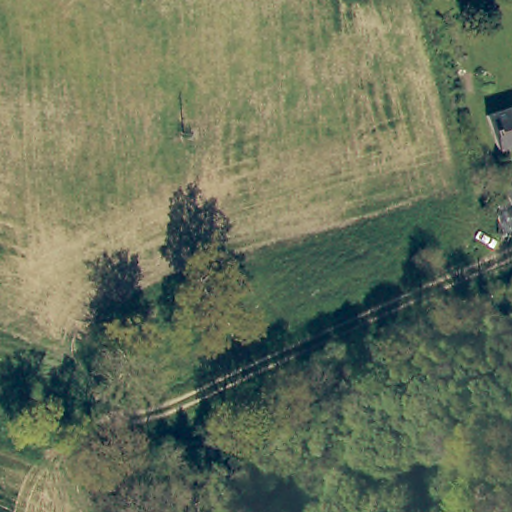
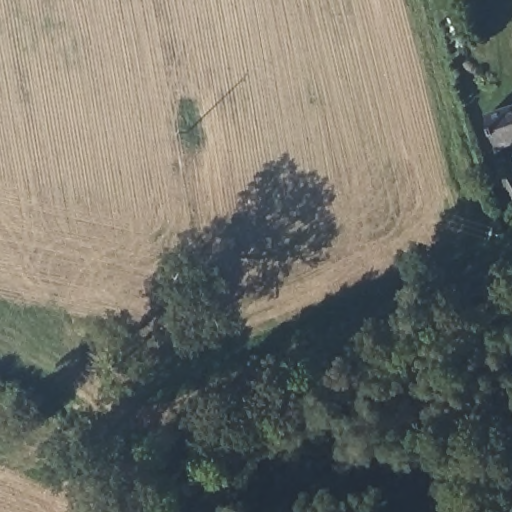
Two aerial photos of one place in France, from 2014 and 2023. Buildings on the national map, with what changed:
unchanged [(512,144),(497,149),(486,112),(512,104),(512,144)]
unchanged [(512,203),(510,204),(500,181),(512,176),(512,203)]

